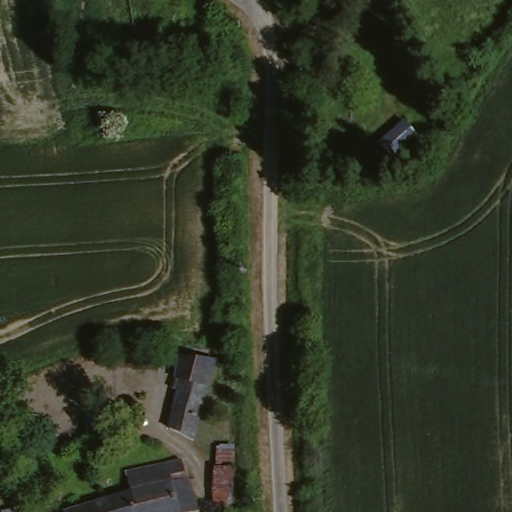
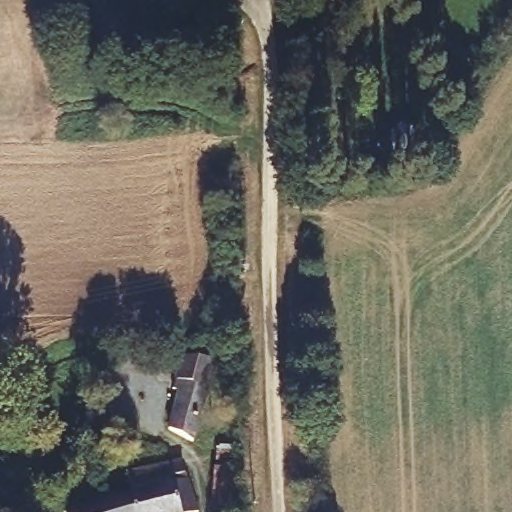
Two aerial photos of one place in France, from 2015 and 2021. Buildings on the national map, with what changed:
unchanged [(404,116),(418,130),(387,158),(375,144),(404,116)]
unchanged [(169,423),(175,401),(182,372),(187,350),(198,346),(216,351),(208,379),(200,410),(194,431),(169,423)]
unchanged [(91,504),(129,491),(126,478),(124,470),(172,451),(196,504),(174,512),(72,512),(89,505),(91,504)]
unchanged [(214,463),(236,465),(234,500),(214,500),(214,463)]

